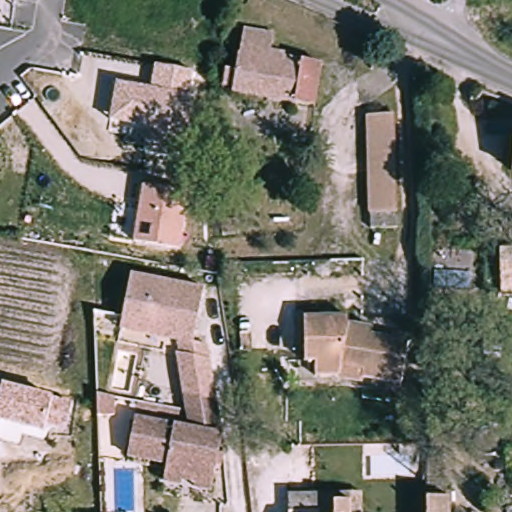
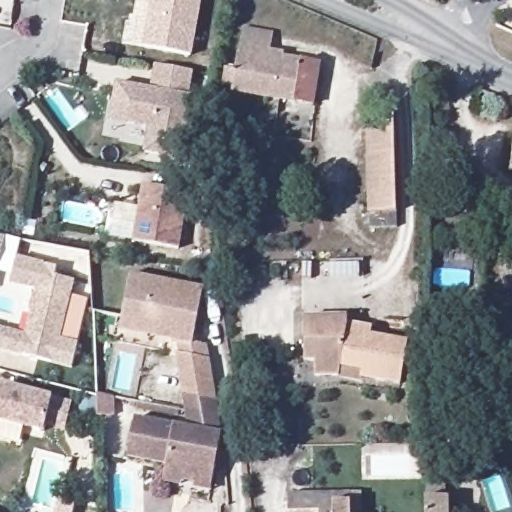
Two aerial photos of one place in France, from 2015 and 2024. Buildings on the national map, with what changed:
new [(157,0),(205,0),(194,60),(148,51),(157,0)]
unchanged [(234,91),(248,29),(277,31),(274,46),(288,49),(287,55),(322,61),(313,104),(234,91)]
unchanged [(193,71),(189,95),(195,96),(181,164),(144,158),(149,131),(108,124),(116,83),(150,89),(155,65),(193,71)]
unchanged [(401,207),(371,208),(368,110),(398,110),(401,207)]
unchanged [(188,191),(180,251),(136,244),(143,184),(188,191)]
new [(2,274),(0,280),(0,239),(10,241),(2,274)]
unchanged [(509,251),(503,252),(504,244),(512,244),(512,286),(508,286),(509,251)]
new [(39,292),(12,285),(18,261),(59,271),(57,280),(75,284),(60,342),(78,347),(72,371),(0,353),(0,331),(27,338),(39,292)]
unchanged [(119,318),(127,268),(201,280),(191,335),(205,338),(205,352),(176,347),(173,333),(161,330),(118,323),(119,318)]
unchanged [(309,315),(349,315),(349,323),(376,327),(375,333),(411,338),(405,378),(367,374),(368,367),(346,364),(344,372),(319,374),(319,358),(309,359),(309,315)]
unchanged [(52,398),(53,395),(75,401),(66,432),(46,423),(43,435),(0,422),(0,391),(3,386),(52,398)]
unchanged [(191,479),(192,473),(179,471),(178,477),(160,474),(162,464),(163,457),(123,449),(129,412),(184,421),(181,387),(212,393),(218,427),(210,472),(208,482),(191,479)]
unchanged [(445,504),(448,505),(448,512),(425,512),(424,480),(445,479),(445,504)]
unchanged [(352,490),(352,512),(290,512),(290,490),(352,490)]

